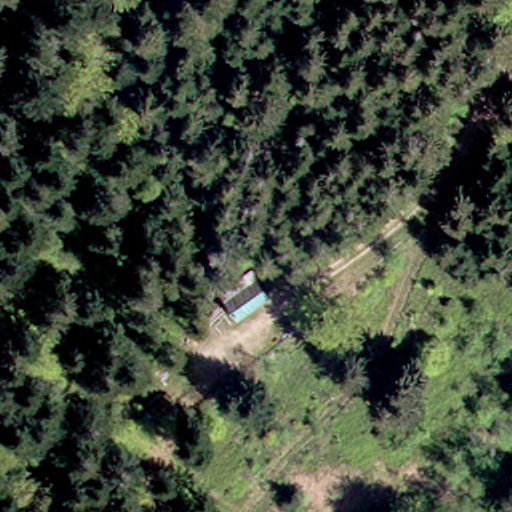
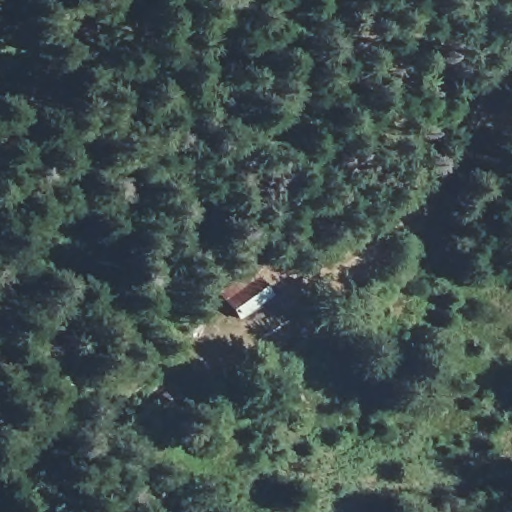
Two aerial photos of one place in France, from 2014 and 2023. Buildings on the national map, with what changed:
unchanged [(262,272),(282,303),(245,328),(227,302),(262,272)]

